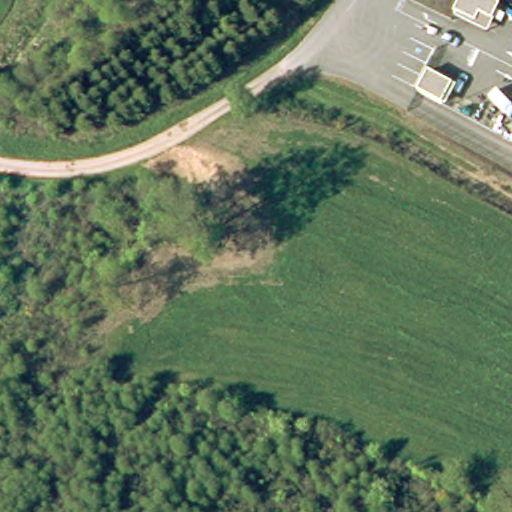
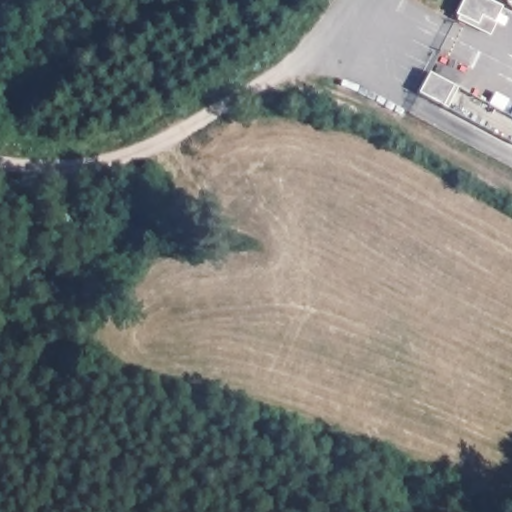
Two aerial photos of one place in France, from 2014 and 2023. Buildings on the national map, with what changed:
unchanged [(455,15),(463,0),(487,0),(502,7),(495,23),(488,36),(456,20),(457,16),(455,15)]
unchanged [(448,107),(443,105),(418,91),(428,72),(453,85),(457,88),(448,107)]

